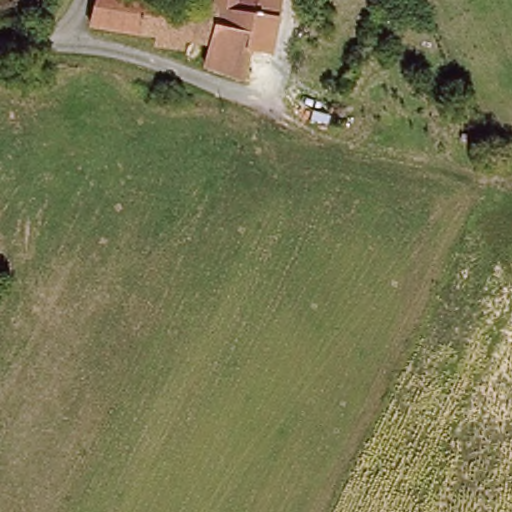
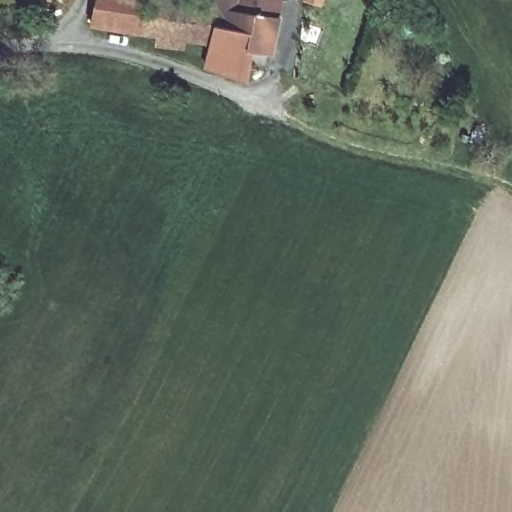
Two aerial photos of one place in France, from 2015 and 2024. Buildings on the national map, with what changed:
unchanged [(214,44),(173,39),(171,46),(160,46),(160,36),(94,29),(103,0),(215,0),(225,1),(214,44)]
unchanged [(225,1),(226,0),(292,0),(289,11),(256,6),(250,29),(261,31),(259,41),(249,71),(210,59),(214,44),(225,1)]
unchanged [(305,3),(305,0),(324,0),(322,8),(305,3)]
unchanged [(259,41),(261,31),(250,29),(256,6),(289,11),(280,45),(259,41)]

